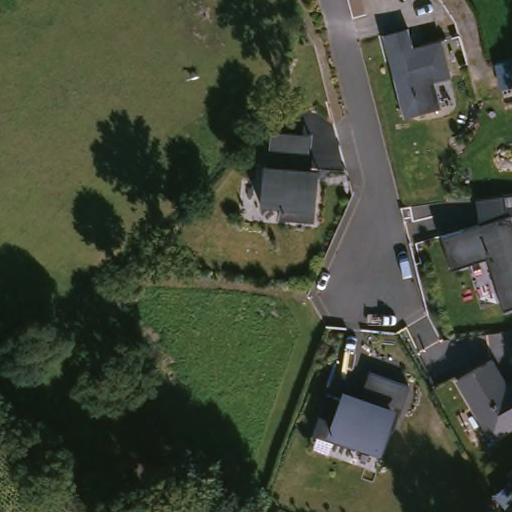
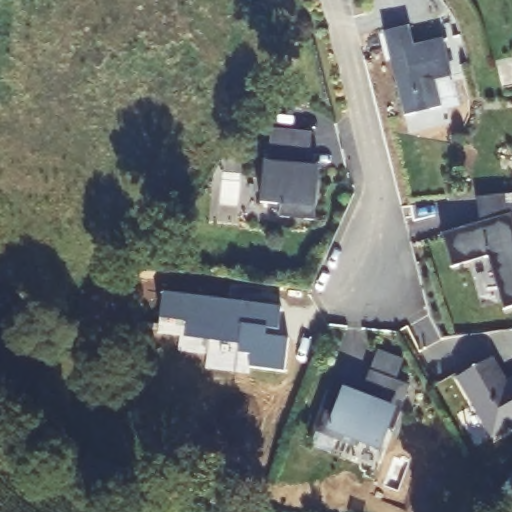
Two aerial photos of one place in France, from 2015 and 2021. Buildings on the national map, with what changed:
unchanged [(452,76),(435,81),(442,107),(405,117),(396,83),(383,34),(408,28),(413,47),(442,40),(452,76)]
unchanged [(321,170),(319,186),(316,222),(282,219),(283,207),(262,205),(265,165),(270,166),(272,147),(273,132),(312,136),(311,151),(310,169),(321,170)]
unchanged [(505,196),(510,215),(512,215),(512,308),(504,310),(490,257),(453,266),(444,232),(484,222),(477,200),(505,196)]
new [(161,292),(280,304),(278,326),(265,325),(264,332),(288,334),(285,368),(249,364),(250,352),(238,351),(239,341),(209,338),(210,330),(185,327),(186,320),(159,317),(161,292)]
unchanged [(502,379),(507,380),(512,377),(512,423),(494,434),(458,375),(491,355),(503,375),(502,379)]
unchanged [(344,401),(359,407),(369,380),(409,396),(392,440),(385,437),(381,445),(377,457),(356,449),(353,455),(311,439),(313,434),(326,400),(342,407),(344,401)]

